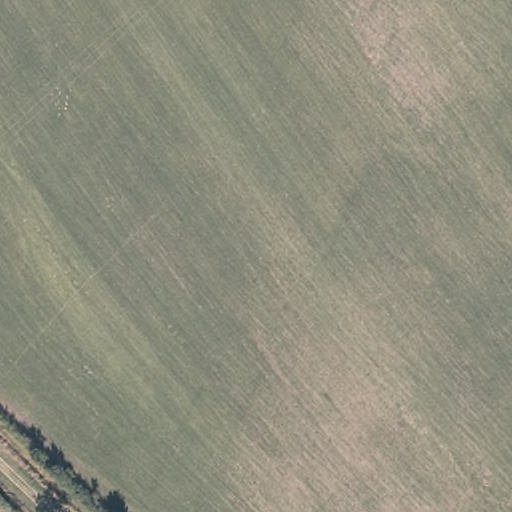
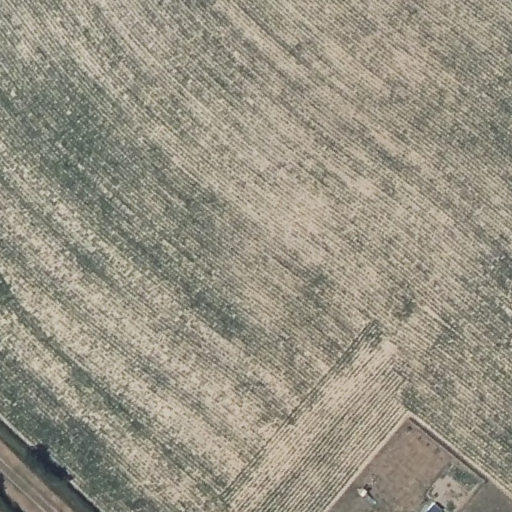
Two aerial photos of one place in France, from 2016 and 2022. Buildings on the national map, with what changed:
[]

